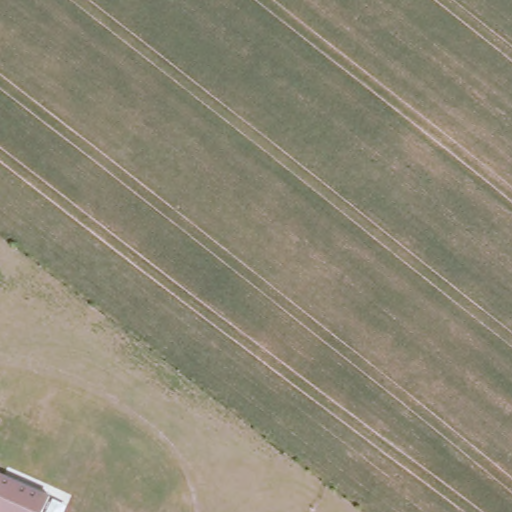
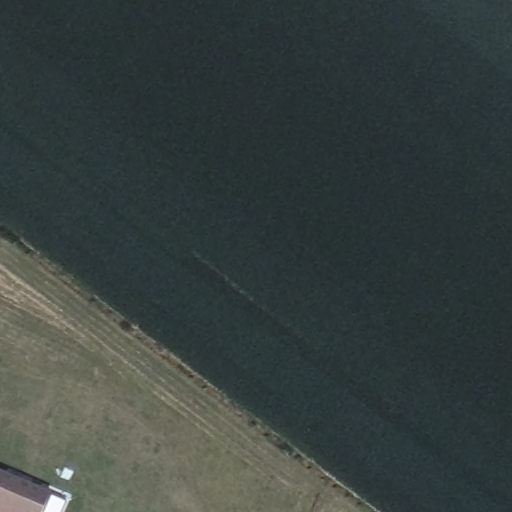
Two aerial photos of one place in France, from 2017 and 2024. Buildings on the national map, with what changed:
unchanged [(43,512),(0,512),(0,471),(51,494),(43,512)]

